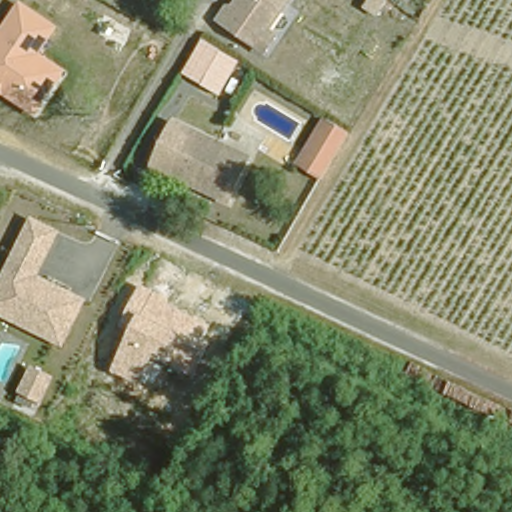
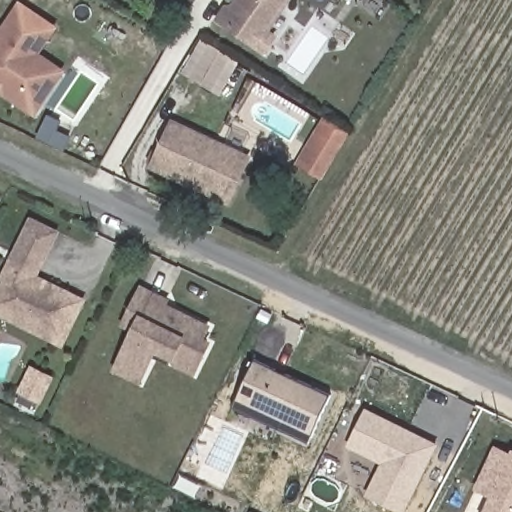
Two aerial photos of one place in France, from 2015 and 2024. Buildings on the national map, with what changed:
unchanged [(263,51),(254,46),(217,24),(215,22),(228,0),(280,0),(263,30),(271,34),(263,51)]
unchanged [(34,116),(0,94),(0,30),(20,1),(60,28),(42,53),(66,70),(34,116)]
unchanged [(220,97),(182,74),(204,40),(240,62),(220,97)]
unchanged [(351,132),(322,180),(296,164),(324,116),(351,132)]
unchanged [(241,158),(219,204),(144,166),(165,122),(241,158)]
unchanged [(61,230),(39,277),(87,300),(65,347),(0,315),(0,280),(30,217),(61,230)]
unchanged [(206,338),(215,344),(193,380),(157,360),(141,386),(110,367),(130,326),(119,318),(141,282),(172,299),(170,303),(213,326),(206,338)]
new [(254,358),(276,369),(285,373),(331,396),(308,444),(277,428),(231,407),(235,397),(254,358)]
unchanged [(52,376),(41,400),(22,392),(32,368),(52,376)]
new [(385,419),(397,426),(433,445),(400,509),(367,492),(383,461),(350,443),(366,410),(385,419)]
new [(510,455),(512,452),(512,512),(483,512),(492,493),(476,486),(496,447),(510,455)]

